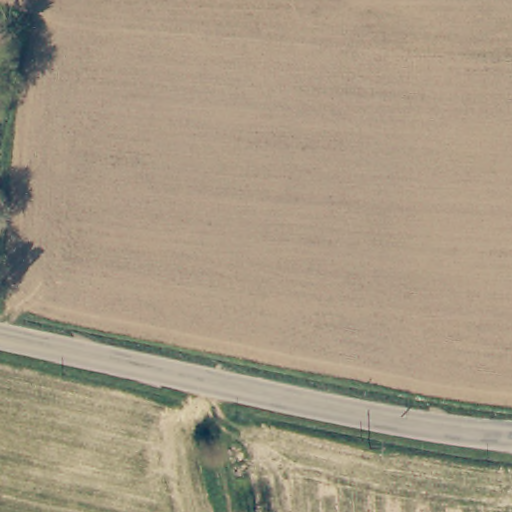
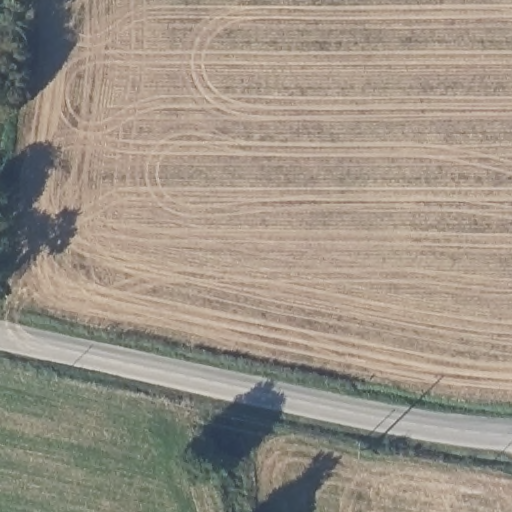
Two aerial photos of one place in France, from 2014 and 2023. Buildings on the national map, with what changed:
[]

